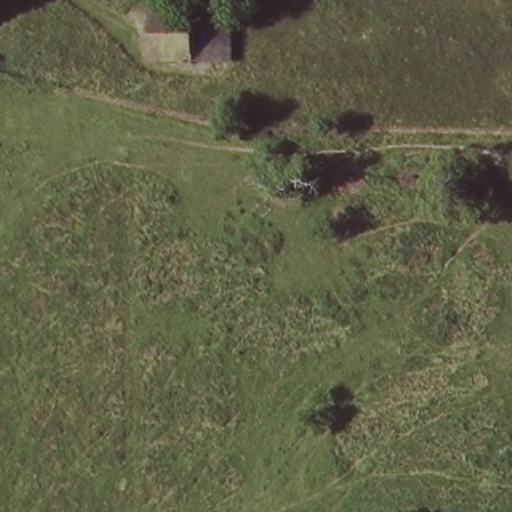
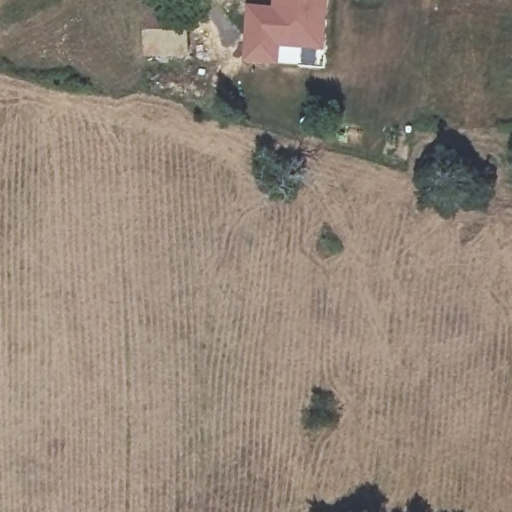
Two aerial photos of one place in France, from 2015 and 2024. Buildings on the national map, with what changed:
new [(252,11),(277,12),(278,0),(326,0),(322,48),(250,44),(252,11)]
unchanged [(155,59),(152,14),(188,14),(191,59),(188,59),(155,59)]

